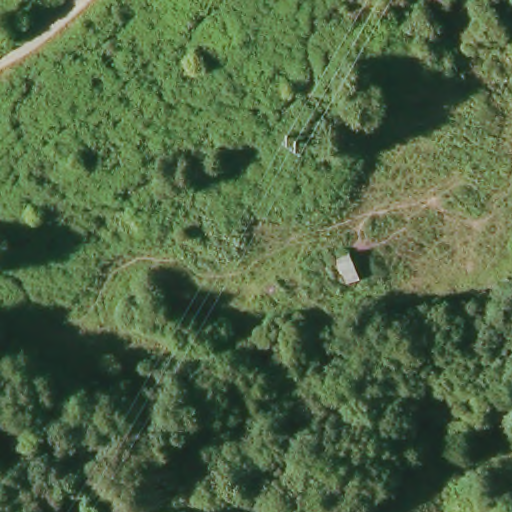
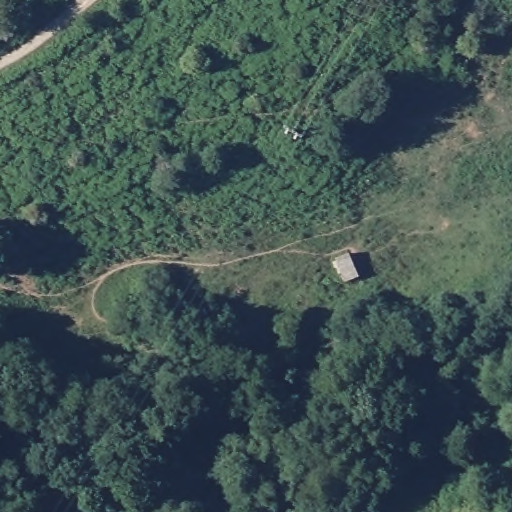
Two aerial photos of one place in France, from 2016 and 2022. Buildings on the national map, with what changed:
unchanged [(358,277),(347,283),(336,258),(347,254),(358,277)]

